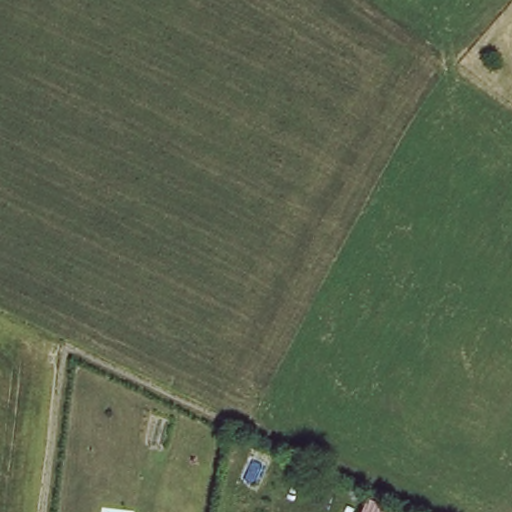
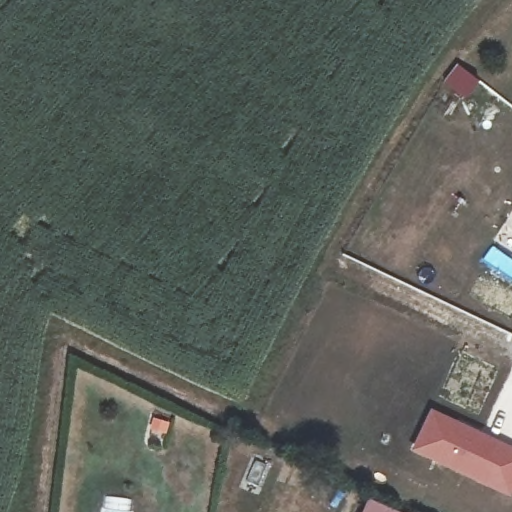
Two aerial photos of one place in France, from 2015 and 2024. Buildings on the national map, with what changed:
new [(512,446),(512,494),(511,497),(410,451),(430,407),(512,446)]
unchanged [(404,512),(360,512),(366,497),(404,512)]

